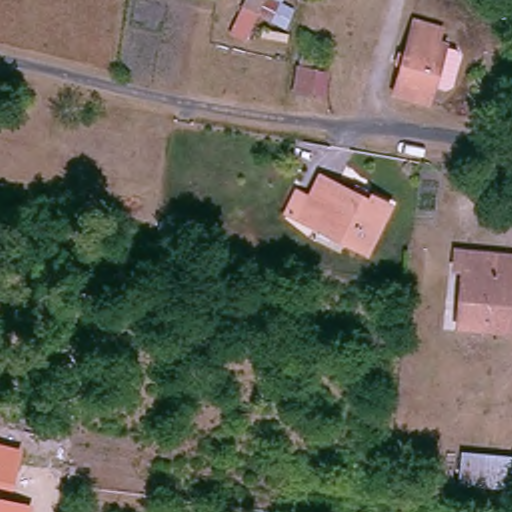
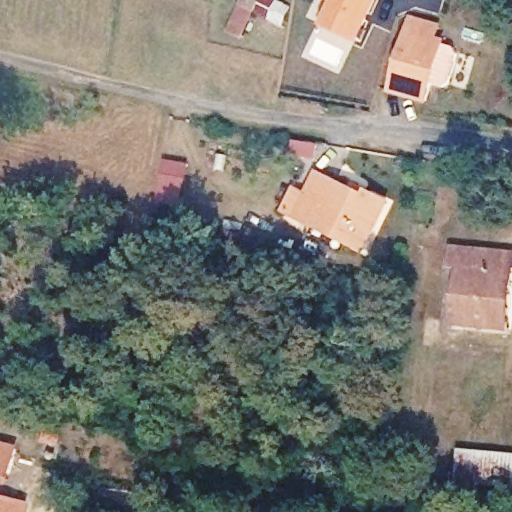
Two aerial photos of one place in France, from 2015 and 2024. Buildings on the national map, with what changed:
unchanged [(296,9),(286,33),(254,21),(248,40),(230,36),(244,0),(285,0),(283,1),(296,9)]
new [(376,0),(353,44),(318,25),(329,0),(376,0)]
unchanged [(451,51),(443,81),(437,84),(425,81),(420,98),(385,89),(405,19),(432,26),(440,28),(436,40),(436,41),(448,45),(451,51)]
unchanged [(305,71),(303,94),(285,93),(287,69),(305,71)]
unchanged [(278,211),(288,190),(302,197),(310,182),(314,176),(330,183),(349,192),(353,185),(366,192),(385,202),(362,251),(344,243),(308,226),(293,219),(278,211)]
unchanged [(442,268),(443,250),(463,251),(490,253),(503,254),(501,307),(500,328),(447,324),(448,306),(450,269),(442,268)]
unchanged [(5,471),(3,477),(0,476),(0,444),(17,448),(12,472),(5,471)]
unchanged [(509,485),(465,482),(466,450),(511,455),(509,485)]
unchanged [(29,502),(26,512),(0,512),(0,494),(29,502)]

